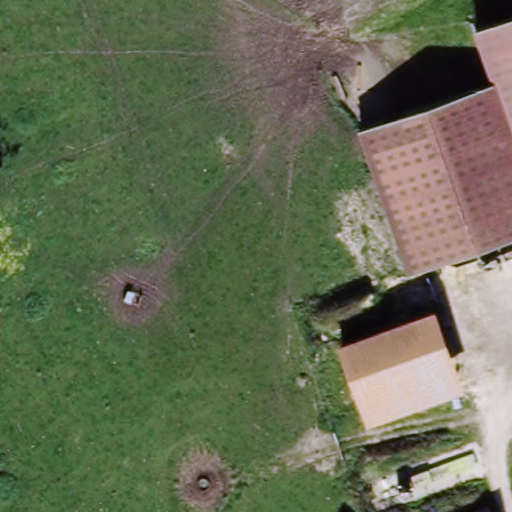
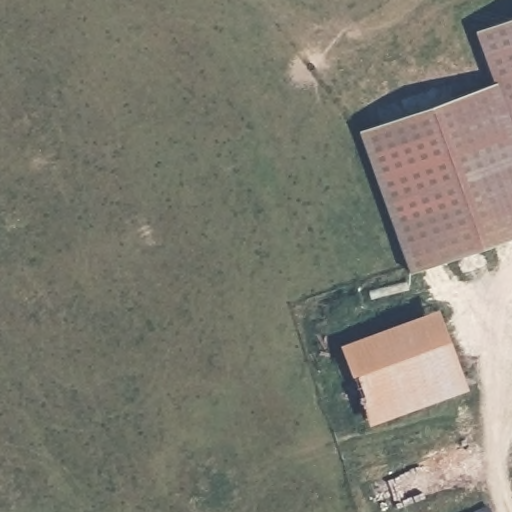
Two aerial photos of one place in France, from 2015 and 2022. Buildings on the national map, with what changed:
unchanged [(490,85),(493,84),(474,32),(512,19),(512,144),(490,85)]
unchanged [(512,144),(512,238),(403,279),(354,136),(490,85),(512,144)]
unchanged [(437,313),(458,374),(364,407),(343,346),(437,313)]

